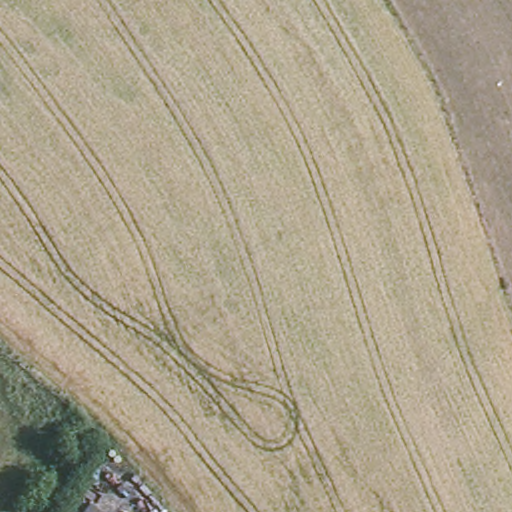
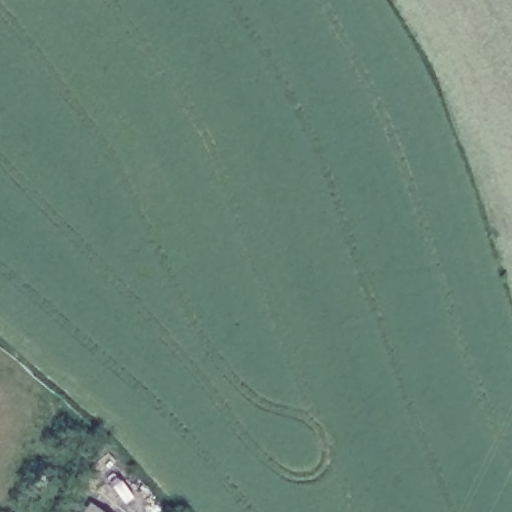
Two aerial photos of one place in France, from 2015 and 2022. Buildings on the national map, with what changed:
unchanged [(103,512),(88,512),(93,505),(103,512)]

